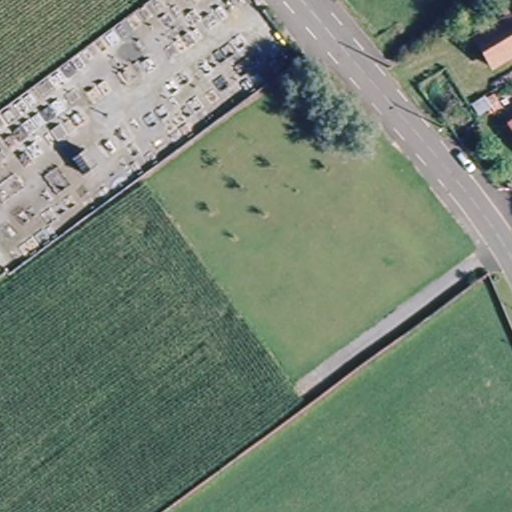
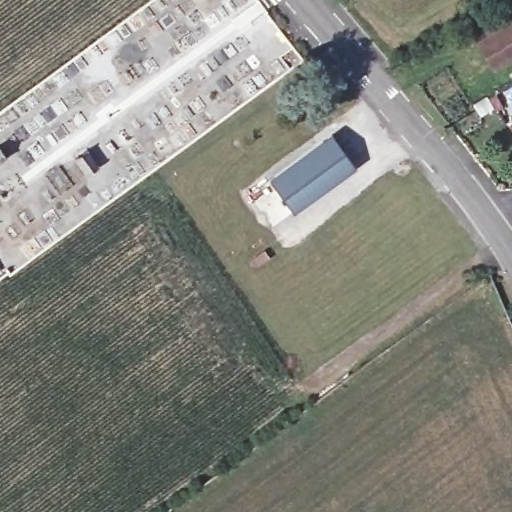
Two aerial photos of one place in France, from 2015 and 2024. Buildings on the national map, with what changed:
unchanged [(505,14),(512,25),(512,48),(491,60),(473,32),(505,14)]
new [(269,181),(330,135),(355,170),(293,212),(269,181)]

